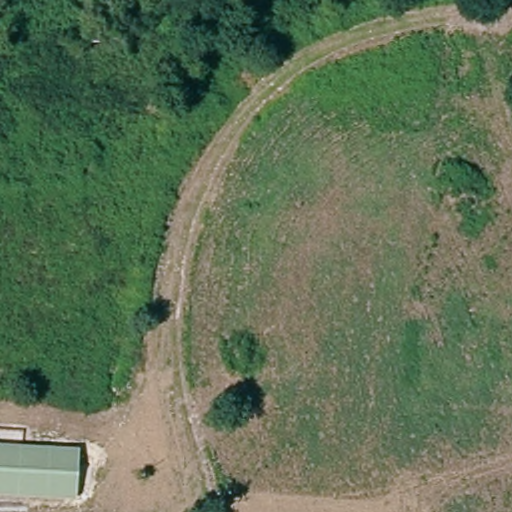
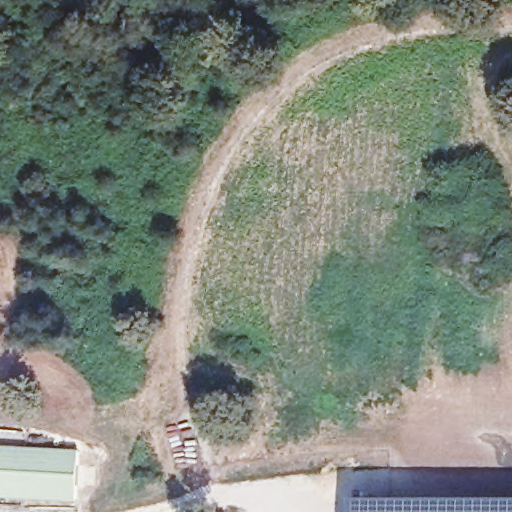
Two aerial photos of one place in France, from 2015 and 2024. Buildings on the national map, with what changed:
unchanged [(77,448),(75,500),(0,497),(0,445),(77,448)]
new [(353,496),(512,496),(512,512),(353,512),(353,496)]

